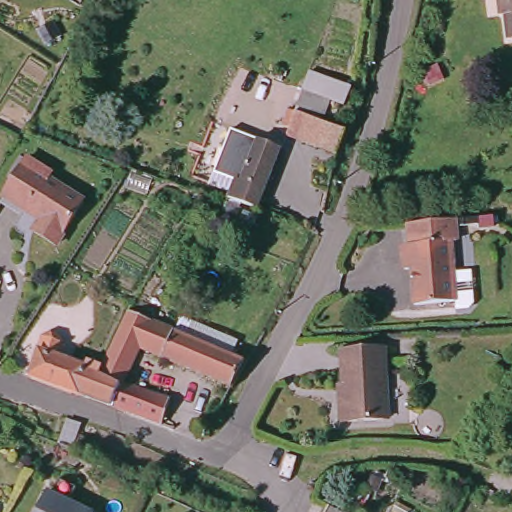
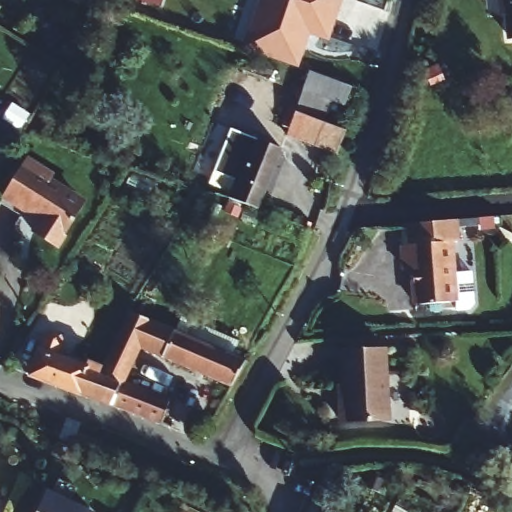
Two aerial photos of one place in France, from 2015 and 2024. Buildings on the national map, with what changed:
new [(261,0),(335,0),(323,32),(304,25),(289,63),(243,46),(261,0)]
unchanged [(494,0),(512,0),(512,34),(507,34),(504,13),(496,14),(494,0)]
unchanged [(303,91),(309,71),(351,86),(344,106),(329,101),(324,117),(297,107),(303,91)]
unchanged [(286,105),(344,127),(334,148),(319,143),(278,130),(286,105)]
unchanged [(208,185),(214,172),(231,128),(246,131),(274,142),(279,144),(261,190),(256,205),(226,194),(208,185)]
unchanged [(45,173),(43,177),(80,200),(53,243),(14,220),(23,208),(0,195),(0,187),(19,158),(20,158),(45,173)]
unchanged [(449,218),(451,237),(444,238),(447,268),(463,267),(465,299),(461,304),(449,305),(449,297),(408,300),(405,265),(398,266),(397,241),(404,240),(403,222),(449,218)]
unchanged [(151,321),(139,346),(123,380),(120,379),(101,371),(109,354),(128,311),(151,321)]
unchanged [(233,387),(154,353),(139,346),(151,321),(165,328),(246,363),(233,387)]
unchanged [(42,340),(48,335),(59,339),(61,347),(56,358),(85,370),(87,365),(101,371),(120,379),(111,407),(28,377),(42,340)]
unchanged [(384,344),(385,413),(338,414),(338,389),(344,389),(343,344),(384,344)]
unchanged [(123,380),(170,398),(161,425),(111,407),(120,379),(123,380)]
unchanged [(58,441),(65,418),(78,422),(75,434),(111,445),(106,461),(93,456),(71,447),(58,441)]
unchanged [(33,512),(44,490),(86,512),(33,512)]
unchanged [(357,512),(320,512),(328,497),(357,512)]

